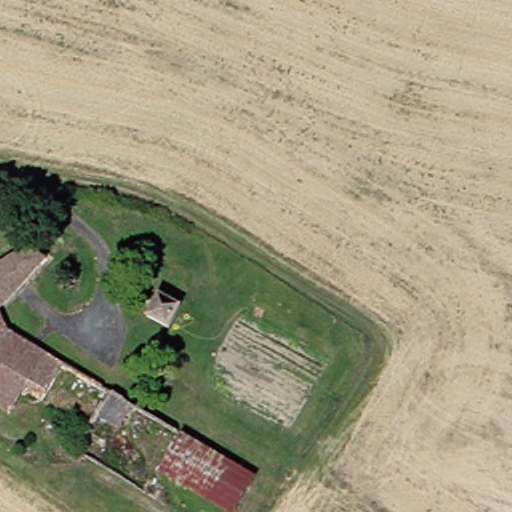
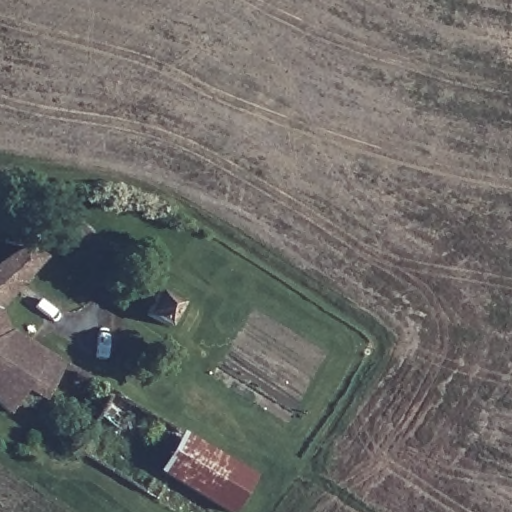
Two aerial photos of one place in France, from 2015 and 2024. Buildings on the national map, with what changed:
unchanged [(27,262),(0,293),(0,256),(13,245),(27,262)]
unchanged [(143,313),(154,290),(176,302),(165,325),(143,313)]
unchanged [(16,396),(2,414),(0,412),(0,330),(7,338),(61,367),(40,407),(16,396)]
unchanged [(175,436),(248,478),(230,512),(228,512),(155,474),(175,436)]

